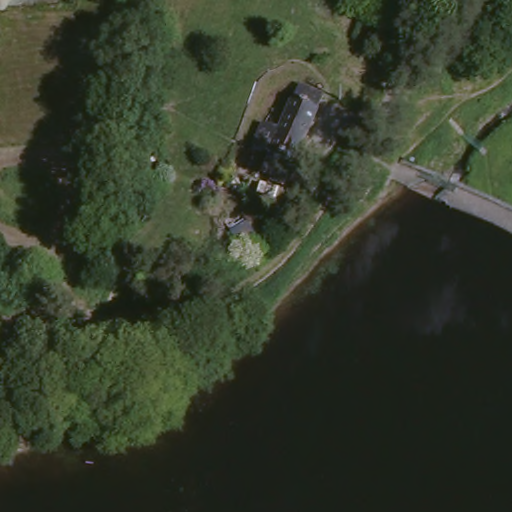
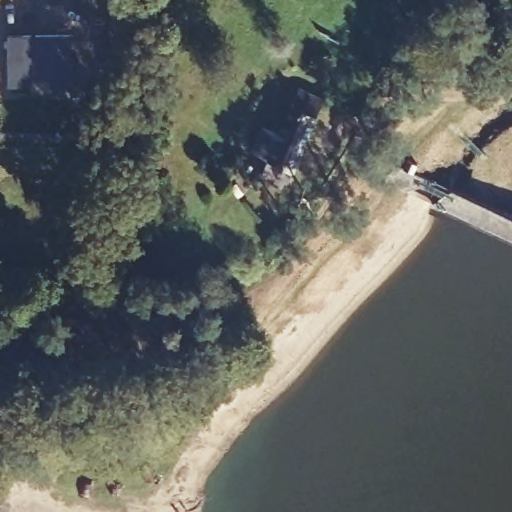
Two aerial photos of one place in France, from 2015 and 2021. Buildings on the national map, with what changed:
new [(71,37),(71,87),(51,87),(51,78),(30,78),(29,87),(9,87),(8,37),(71,37)]
unchanged [(282,195),(259,187),(263,170),(246,159),(254,137),(276,143),(294,95),(320,104),(314,117),(288,182),(282,195)]

